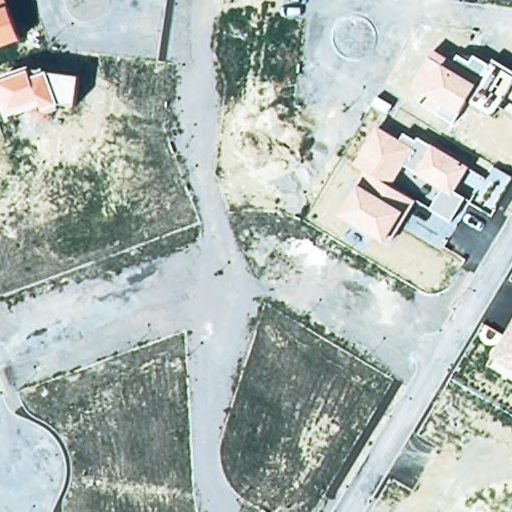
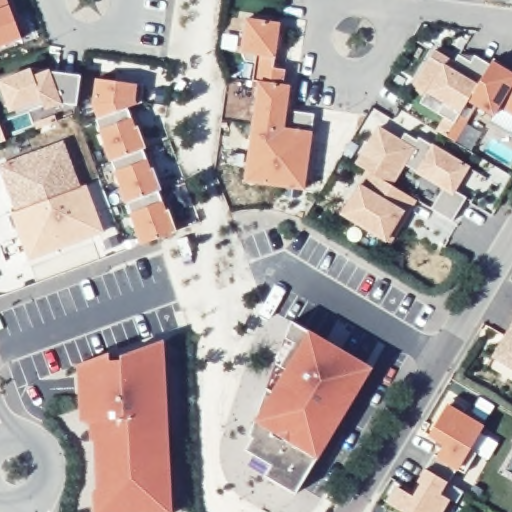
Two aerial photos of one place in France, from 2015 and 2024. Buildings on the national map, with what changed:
unchanged [(27,43),(0,53),(0,0),(12,0),(27,43)]
new [(272,68),(285,70),(282,85),(288,86),(284,128),(310,132),(302,190),(244,182),(257,81),(250,80),(252,55),(238,52),(242,17),(279,22),(272,68)]
unchanged [(492,117),(464,103),(452,122),(437,113),(442,103),(410,85),(433,51),(452,62),(457,55),(470,63),(474,56),(489,66),(492,59),(512,71),(512,117),(497,107),(492,117)]
unchanged [(77,105),(60,103),(44,109),(40,100),(5,113),(0,94),(0,79),(30,68),(33,75),(49,70),(80,75),(77,105)]
new [(134,99),(135,104),(128,106),(174,231),(139,244),(90,110),(94,78),(136,83),(134,99)]
unchanged [(440,222),(420,210),(431,191),(393,167),(384,187),(405,200),(380,245),(328,215),(354,171),(344,164),(366,126),(389,140),(392,134),(405,141),(407,137),(459,168),(445,192),(455,198),(440,222)]
new [(15,212),(0,171),(0,165),(62,142),(82,188),(87,186),(105,233),(28,261),(10,213),(15,212)]
new [(294,493),(245,463),(250,453),(243,448),(250,438),(245,436),(289,318),(372,367),(294,493)]
unchanged [(512,322),(512,368),(491,357),(512,322)]
new [(78,422),(75,364),(108,352),(109,358),(162,340),(171,512),(91,512),(87,422),(78,422)]
new [(448,483),(445,481),(427,470),(441,444),(427,436),(445,403),(484,425),(448,483)]
new [(439,494),(449,500),(441,512),(402,512),(402,511),(388,502),(397,488),(411,496),(419,483),(415,481),(422,468),(427,470),(445,481),(439,494)]

